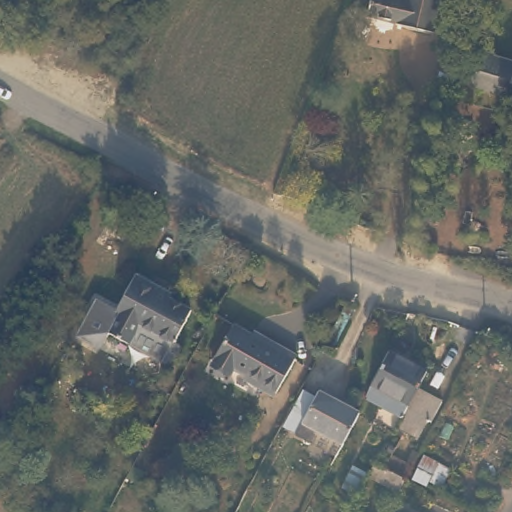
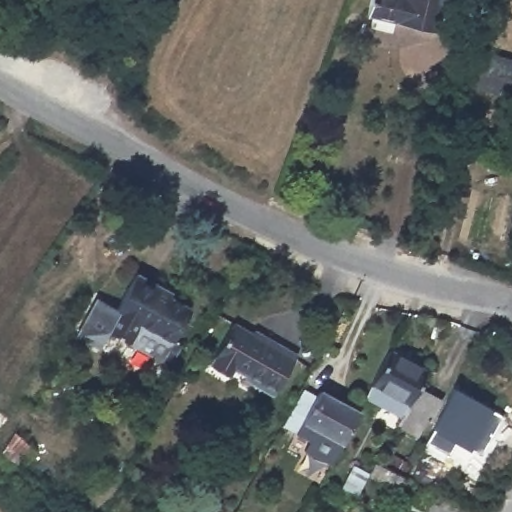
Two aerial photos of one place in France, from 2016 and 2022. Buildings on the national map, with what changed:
unchanged [(371,14),(373,0),(445,0),(437,31),(371,14)]
unchanged [(478,55),(512,65),(512,79),(505,102),(467,90),(478,55)]
unchanged [(165,280),(163,284),(196,304),(179,333),(185,337),(175,355),(118,323),(112,333),(104,328),(101,333),(88,325),(107,291),(126,301),(145,268),(165,280)]
unchanged [(294,350),(275,386),(212,356),(242,319),(294,350)]
unchanged [(396,350),(430,370),(429,371),(421,387),(415,398),(409,404),(378,383),(396,350)]
unchanged [(283,422),(304,382),(323,393),(328,390),(366,409),(366,411),(342,455),(283,422)]
unchanged [(443,401),(432,420),(427,419),(417,435),(398,423),(400,420),(409,410),(415,398),(421,387),(443,401)]
new [(505,414),(479,455),(455,442),(446,455),(427,441),(441,420),(454,388),(505,414)]
unchanged [(38,453),(24,468),(0,447),(0,446),(11,427),(38,453)]
unchanged [(387,427),(401,435),(392,452),(378,445),(387,427)]
unchanged [(374,454),(405,470),(402,477),(397,475),(393,483),(367,468),(374,454)]
unchanged [(416,476),(426,456),(453,469),(442,490),(416,476)]
unchanged [(341,482),(353,462),(367,470),(356,490),(341,482)]

